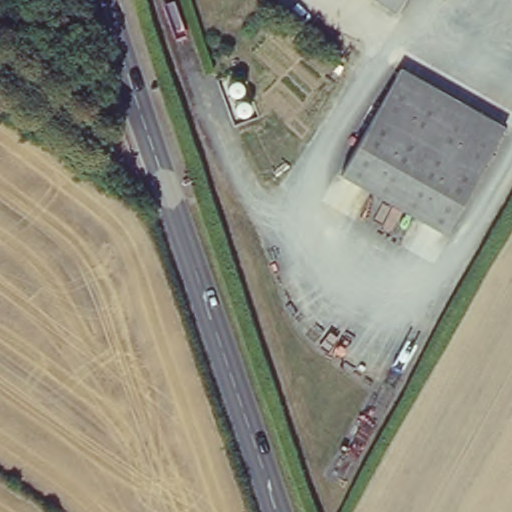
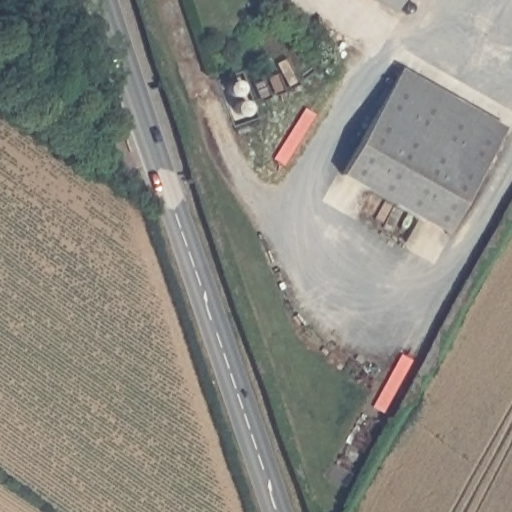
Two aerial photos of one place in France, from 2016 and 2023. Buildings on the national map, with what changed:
unchanged [(378,0),(405,0),(396,12),(378,0)]
unchanged [(401,70),(505,130),(446,234),(341,174),(401,70)]

